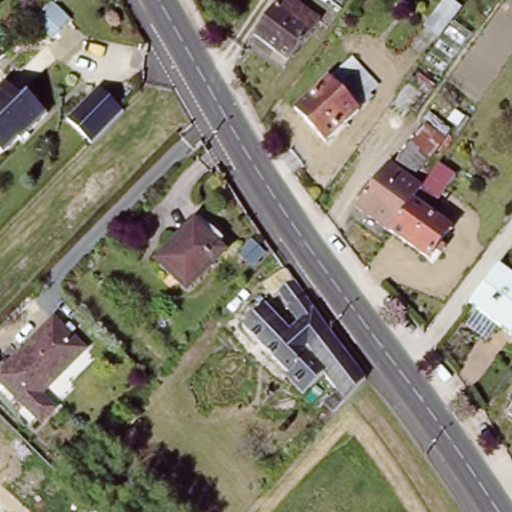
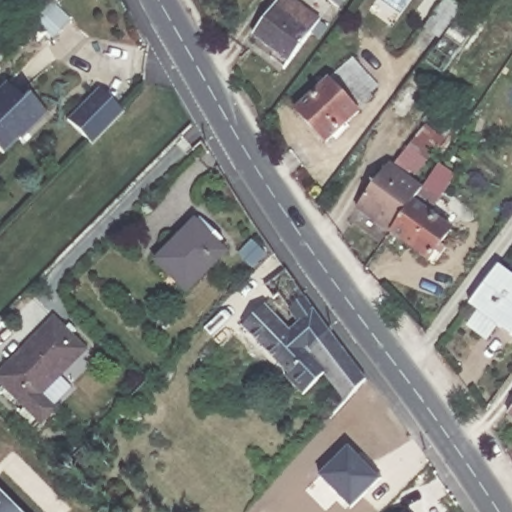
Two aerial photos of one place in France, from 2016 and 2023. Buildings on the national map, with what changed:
unchanged [(52,6),(47,0),(58,0),(52,6)]
unchanged [(271,52),(277,46),(254,28),(275,0),(300,0),(320,15),(290,57),(285,63),(271,52)]
unchanged [(441,28),(427,16),(441,0),(450,0),(459,6),(441,28)]
unchanged [(330,142),(300,110),(349,66),(378,97),(330,142)]
unchanged [(118,109),(86,140),(62,116),(93,84),(118,109)]
unchanged [(27,96),(47,117),(22,142),(19,139),(2,155),(0,153),(0,90),(4,86),(20,102),(27,96)]
unchanged [(447,140),(414,179),(397,165),(424,135),(427,137),(433,129),(447,140)]
unchanged [(355,216),(387,172),(421,196),(420,197),(411,210),(389,241),(355,216)]
unchanged [(411,210),(450,239),(429,269),(389,241),(411,210)]
unchanged [(225,253),(187,292),(152,259),(191,221),(225,253)]
unchanged [(320,401),(334,387),(321,372),(301,389),(239,323),(262,302),(286,328),(295,318),(275,290),(269,295),(260,281),(280,266),(319,321),(360,379),(330,413),(320,401)]
unchanged [(512,279),(512,338),(511,339),(470,307),(499,269),(512,279)]
unchanged [(37,393),(50,407),(37,421),(0,383),(0,369),(50,318),(82,349),(37,393)]
unchanged [(367,401),(358,411),(355,408),(348,401),(357,391),(367,401)]
unchanged [(509,412),(512,408),(512,415),(509,412)]
new [(349,448),(367,467),(370,465),(382,478),(352,508),(320,476),(349,448)]
new [(0,512),(0,488),(24,512),(0,512)]

